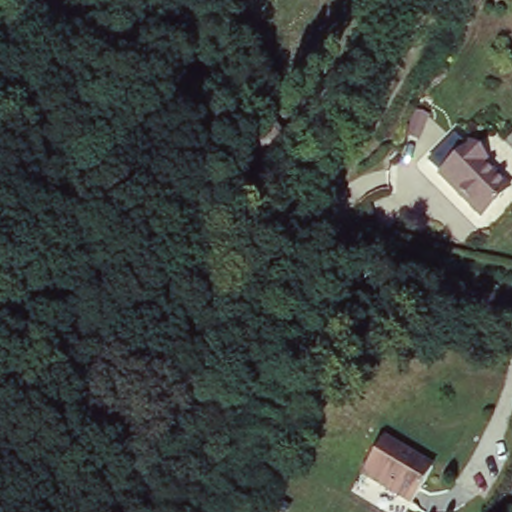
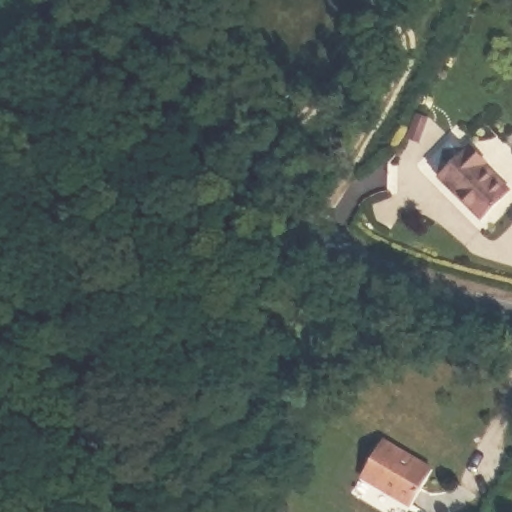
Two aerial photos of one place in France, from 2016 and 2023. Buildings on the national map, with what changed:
unchanged [(463,142),(466,137),(487,154),(484,157),(508,179),(478,211),(434,176),(436,170),(424,162),(452,131),(463,142)]
unchanged [(433,467),(413,498),(364,469),(382,437),(433,467)]

